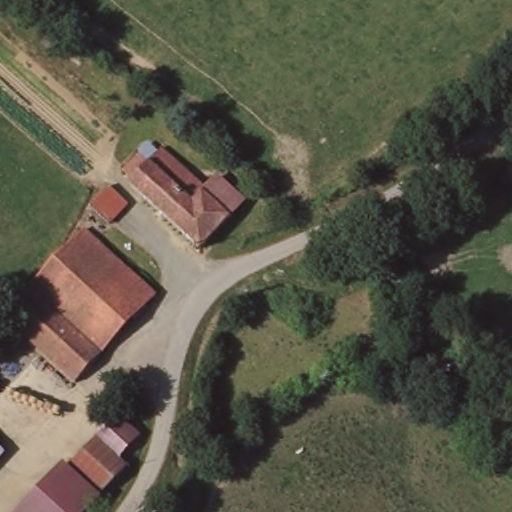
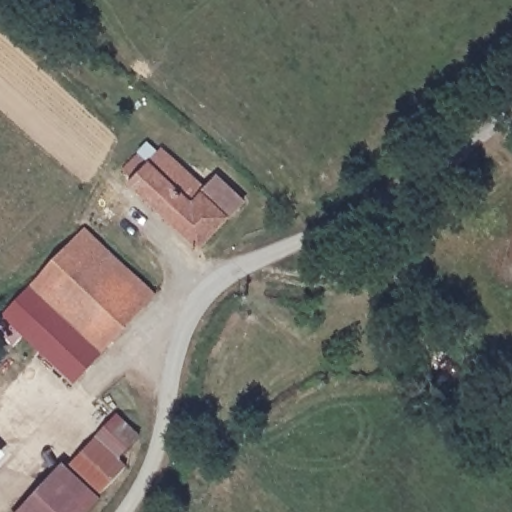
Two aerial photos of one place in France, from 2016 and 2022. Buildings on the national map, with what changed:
unchanged [(200,258),(127,192),(132,189),(122,180),(123,179),(139,162),(148,171),(161,157),(206,199),(217,186),(244,211),(200,258)]
unchanged [(108,224),(89,206),(96,198),(108,185),(127,204),(108,224)]
unchanged [(75,387),(24,340),(13,351),(0,339),(0,322),(2,320),(76,241),(84,234),(156,300),(75,387)]
unchanged [(126,467),(93,440),(117,414),(140,435),(126,467)]
unchanged [(101,493),(69,465),(93,440),(126,467),(101,493)]
unchanged [(1,456),(0,458),(0,456),(1,456)]
unchanged [(19,512),(64,464),(101,498),(88,512),(19,512)]

